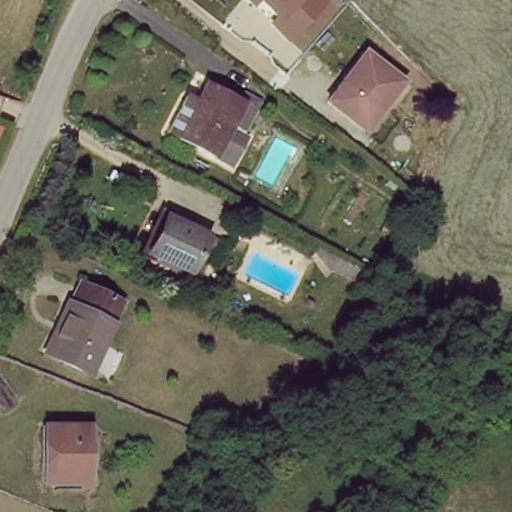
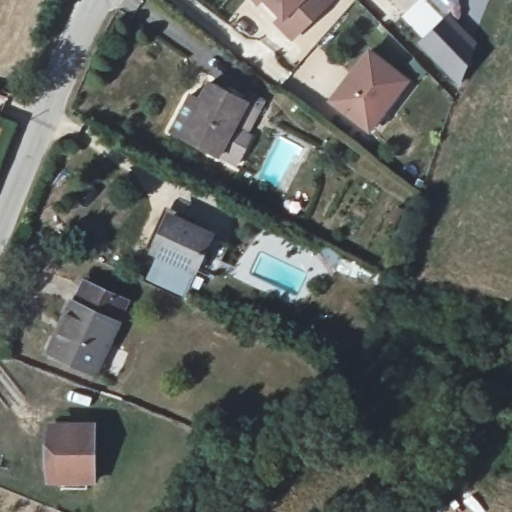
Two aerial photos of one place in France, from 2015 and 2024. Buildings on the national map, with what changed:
unchanged [(255,3),(251,0),(259,0),(255,3)]
unchanged [(337,3),(293,43),(271,21),(278,14),(263,0),(334,0),(337,3)]
new [(417,0),(428,0),(444,15),(420,38),(399,16),(417,0)]
new [(453,17),(480,47),(463,83),(425,42),(453,17)]
unchanged [(408,81),(387,108),(382,104),(365,125),(332,96),(370,49),(408,81)]
unchanged [(245,128),(230,159),(177,133),(166,127),(183,94),(193,99),(204,77),(240,95),(243,87),(257,93),(242,124),(228,117),(227,119),(245,128)]
unchanged [(0,124),(10,129),(0,155),(0,124)]
unchanged [(194,269),(157,251),(162,237),(158,234),(165,214),(207,232),(194,269)]
unchanged [(127,301),(95,372),(54,354),(84,283),(127,301)]
unchanged [(91,422),(93,482),(88,482),(88,493),(55,493),(55,484),(49,483),(48,424),(91,422)]
unchanged [(285,424),(302,445),(285,456),(261,447),(285,424)]

